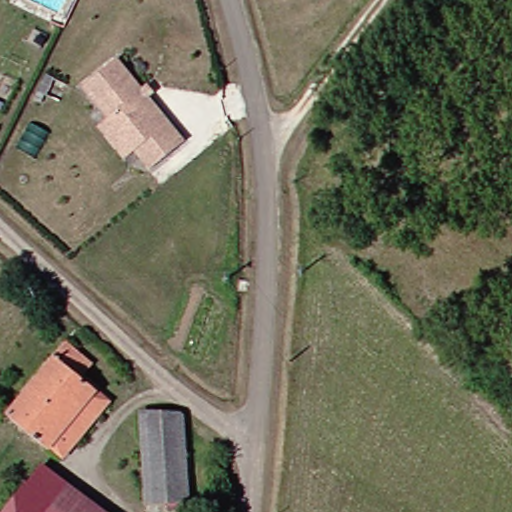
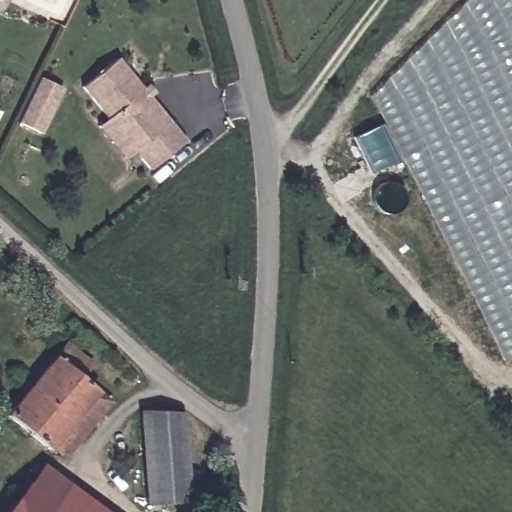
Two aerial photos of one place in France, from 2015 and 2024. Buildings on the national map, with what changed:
new [(367,97),(466,0),(512,0),(512,359),(505,363),(400,159),(381,124),(367,97)]
unchanged [(95,128),(105,120),(80,86),(113,59),(182,143),(147,171),(131,151),(122,160),(95,128)]
new [(44,135),(19,123),(40,78),(65,90),(44,135)]
new [(400,159),(372,174),(353,139),(381,124),(400,159)]
unchanged [(59,454),(6,407),(65,339),(99,369),(90,381),(106,397),(59,454)]
unchanged [(117,408),(69,464),(59,454),(106,397),(117,408)]
unchanged [(147,494),(142,413),(185,412),(186,494),(147,494)]
unchanged [(35,483),(48,466),(110,512),(10,512),(35,483)]

